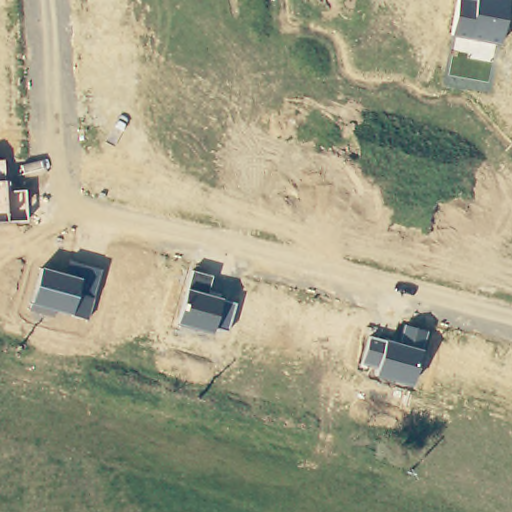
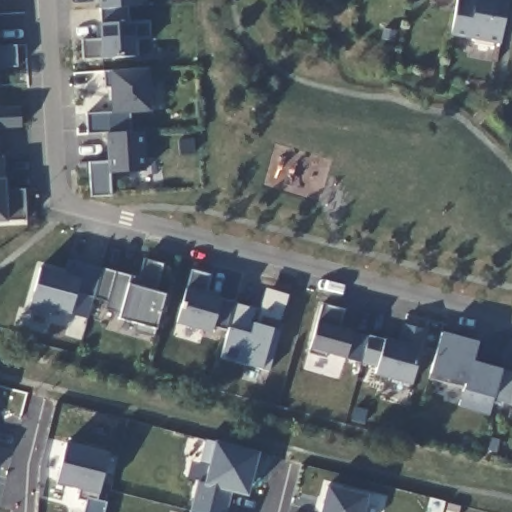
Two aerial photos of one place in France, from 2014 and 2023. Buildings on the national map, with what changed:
new [(128,9),(129,22),(149,21),(150,38),(136,40),(137,59),(82,60),(81,40),(96,40),(96,27),(99,27),(97,0),(139,0),(140,9),(128,9)]
unchanged [(452,36),(458,0),(508,0),(502,44),(452,36)]
new [(152,111),(112,115),(110,88),(104,87),(103,71),(148,69),(152,111)]
new [(20,108),(21,130),(2,130),(4,160),(0,160),(0,108),(20,108)]
unchanged [(146,172),(109,174),(110,186),(90,187),(89,163),(108,163),(106,133),(145,132),(146,172)]
unchanged [(4,160),(6,191),(25,190),(27,221),(7,222),(0,222),(0,160),(4,160)]
new [(140,279),(145,259),(163,265),(155,292),(166,295),(154,338),(134,333),(137,324),(118,319),(120,314),(106,308),(103,315),(89,313),(102,270),(140,279)]
unchanged [(102,270),(87,320),(72,315),(55,310),(54,317),(29,311),(32,304),(41,268),(65,274),(70,261),(102,270)]
unchanged [(214,276),(209,295),(221,298),(235,303),(228,331),(214,327),(212,332),(177,324),(187,288),(192,271),(214,276)]
new [(257,310),(254,323),(274,329),(262,370),(220,358),(228,331),(235,303),(257,310)]
unchanged [(345,360),(325,354),(324,360),(308,354),(323,305),(343,311),(338,328),(353,332),(369,336),(362,363),(345,360)]
unchanged [(386,341),(397,344),(404,322),(428,330),(423,351),(414,385),(375,375),(378,367),(362,363),(369,336),(386,341)]
new [(474,361),(512,371),(512,407),(493,402),(490,415),(459,407),(464,390),(429,381),(442,333),(479,342),(474,361)]
new [(248,495),(229,492),(223,512),(189,512),(197,481),(204,482),(208,465),(198,463),(205,439),(217,442),(259,452),(248,495)]
new [(99,494),(97,501),(107,504),(104,512),(82,512),(85,501),(77,499),(78,490),(56,485),(67,444),(108,453),(99,494)]
new [(363,512),(321,512),(327,485),(367,495),(363,512)]

